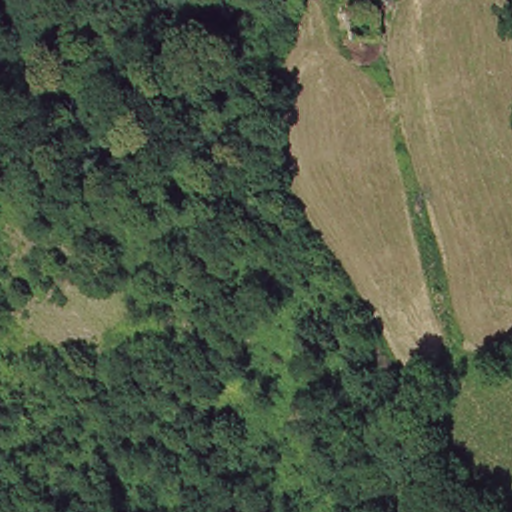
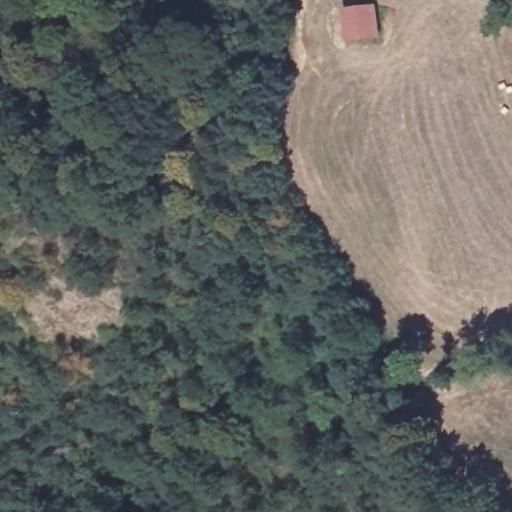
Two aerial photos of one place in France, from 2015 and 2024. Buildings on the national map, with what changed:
new [(341,9),(377,5),(382,39),(345,43),(341,9)]

